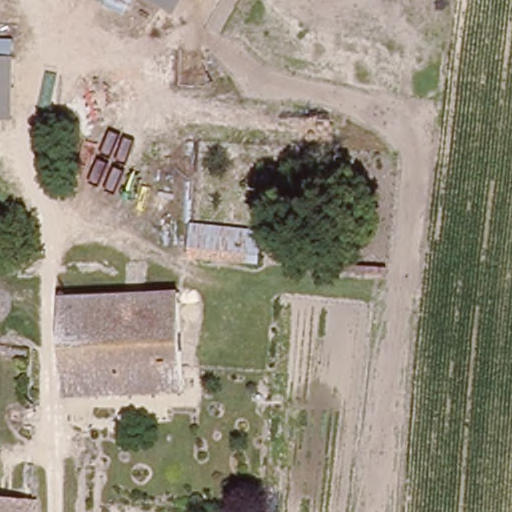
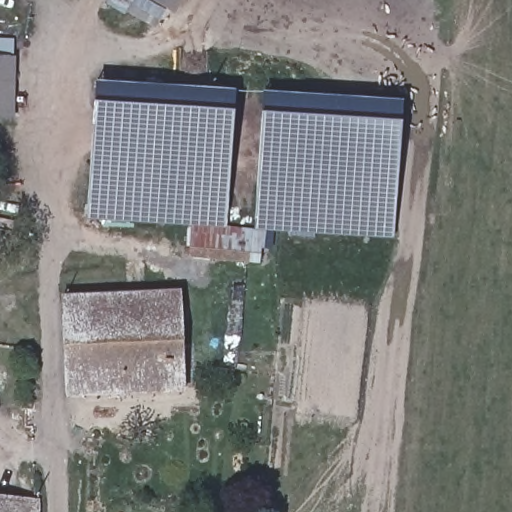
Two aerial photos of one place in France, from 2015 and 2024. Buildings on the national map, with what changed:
unchanged [(161,0),(167,0),(165,2),(161,0)]
unchanged [(13,61),(12,122),(0,120),(0,60),(13,61)]
new [(236,91),(234,112),(226,227),(87,219),(94,104),(96,82),(236,91)]
new [(402,101),(401,122),(393,239),(254,230),(262,114),(264,92),(402,101)]
unchanged [(250,261),(196,258),(197,233),(251,235),(250,261)]
unchanged [(184,386),(70,397),(65,302),(175,293),(184,386)]
unchanged [(39,498),(40,512),(0,512),(0,496),(39,498)]

